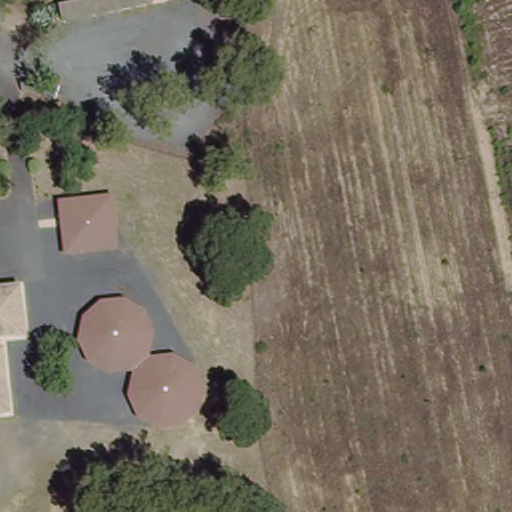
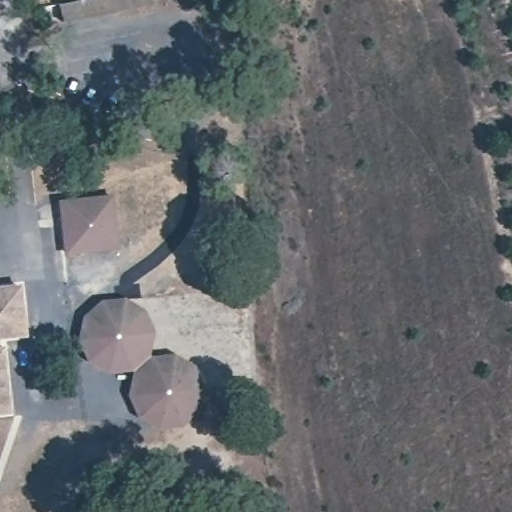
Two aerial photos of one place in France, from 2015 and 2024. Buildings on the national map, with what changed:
unchanged [(187,0),(65,27),(57,2),(66,0),(187,0)]
unchanged [(114,195),(121,251),(64,256),(60,200),(114,195)]
unchanged [(26,330),(0,335),(0,286),(16,283),(26,330)]
unchanged [(124,298),(147,311),(154,332),(152,356),(175,353),(197,365),(205,393),(200,414),(183,429),(154,431),(132,410),(127,394),(133,373),(107,376),(82,360),(76,337),(84,318),(102,300),(124,298)]
unchanged [(9,367),(13,384),(18,408),(0,411),(0,345),(5,344),(9,367)]

